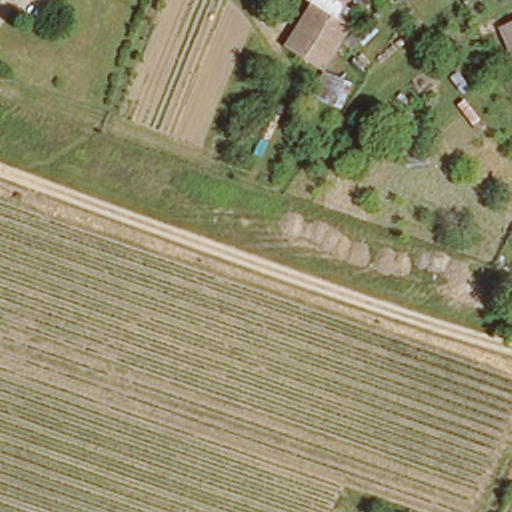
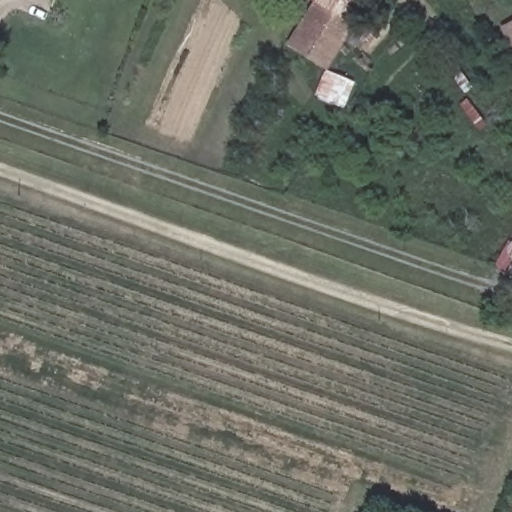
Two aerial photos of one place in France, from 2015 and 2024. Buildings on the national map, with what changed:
unchanged [(383,29),(367,50),(361,42),(345,56),(338,46),(324,69),(286,48),(315,4),(311,0),(367,0),(383,29)]
unchanged [(512,23),(512,46),(502,28),(512,23)]

